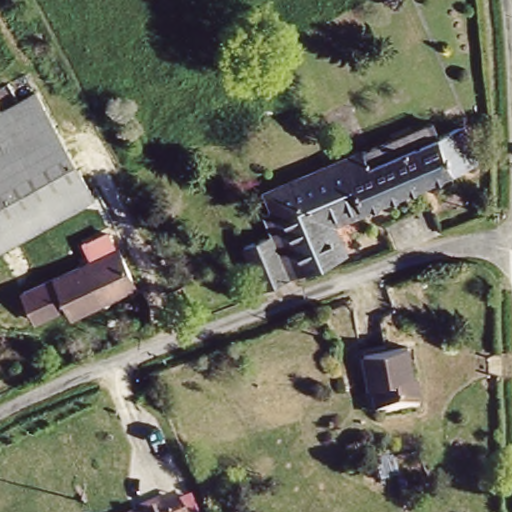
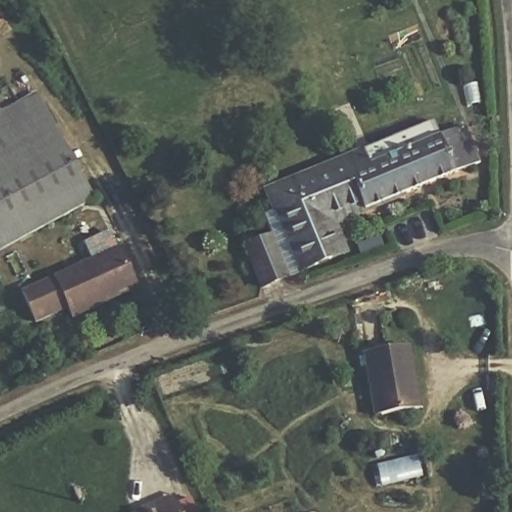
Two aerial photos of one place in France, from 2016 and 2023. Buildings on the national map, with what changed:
unchanged [(39,95),(83,190),(0,233),(0,115),(39,95)]
unchanged [(400,136),(455,112),(459,124),(493,110),(497,156),(418,188),(361,210),(380,266),(301,297),(270,222),(306,208),(298,190),(294,180),(400,136)]
unchanged [(241,247),(269,233),(288,276),(257,289),(241,247)]
unchanged [(120,250),(135,283),(68,317),(63,308),(26,327),(15,303),(120,250)]
unchanged [(405,350),(413,412),(375,418),(367,356),(405,350)]
unchanged [(166,512),(135,512),(162,501),(166,512)]

